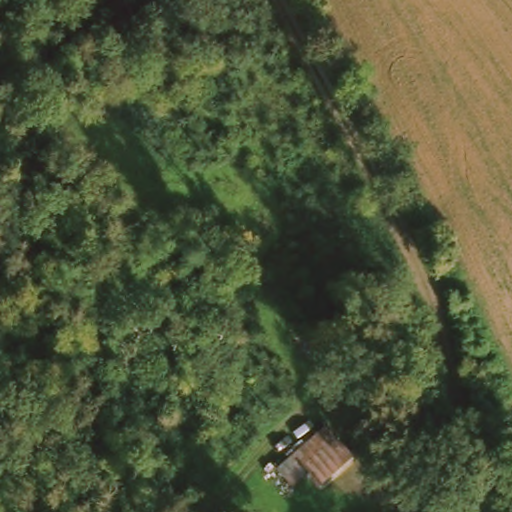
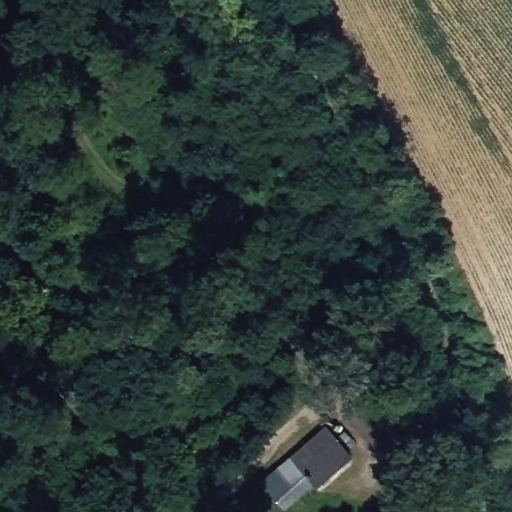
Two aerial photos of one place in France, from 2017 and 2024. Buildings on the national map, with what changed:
unchanged [(276,471),(286,462),(322,432),(347,463),(311,494),(300,479),(289,489),(276,471)]

